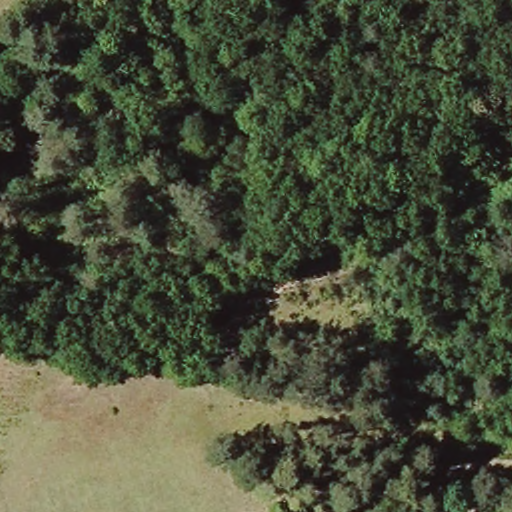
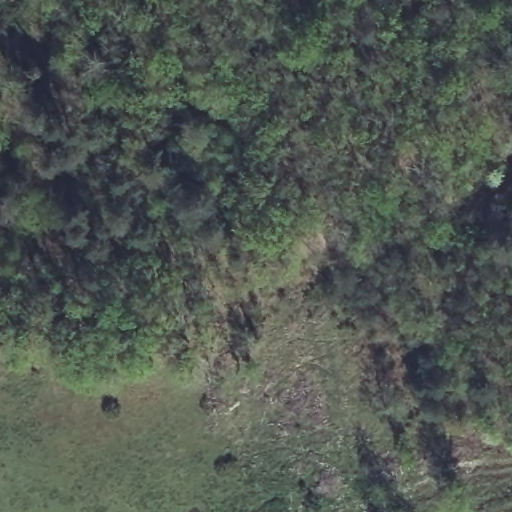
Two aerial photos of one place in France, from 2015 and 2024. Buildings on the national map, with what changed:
[]

